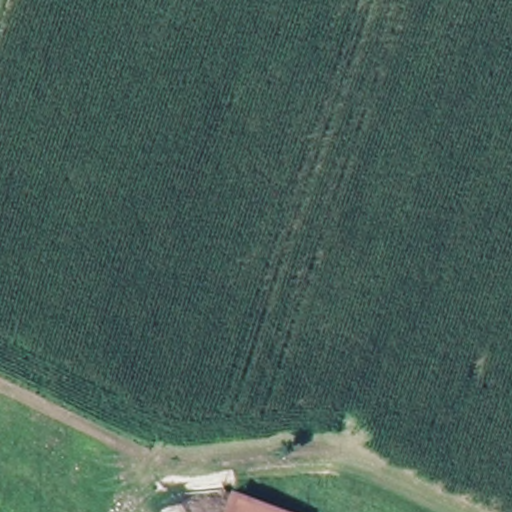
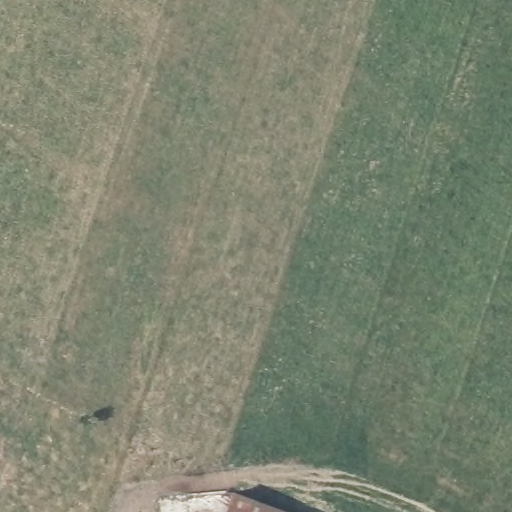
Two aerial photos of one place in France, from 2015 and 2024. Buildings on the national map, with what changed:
unchanged [(243,493),(296,512),(236,512),(243,493)]

